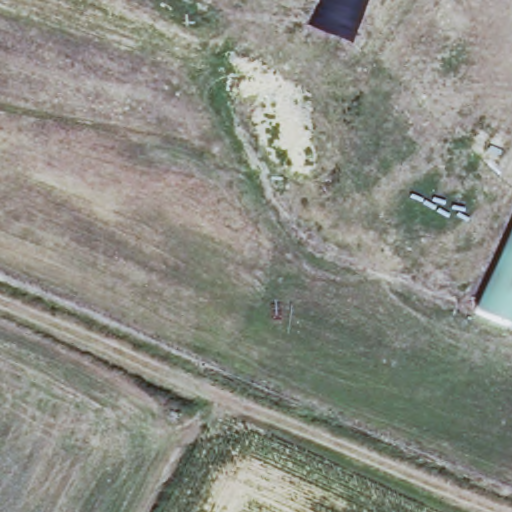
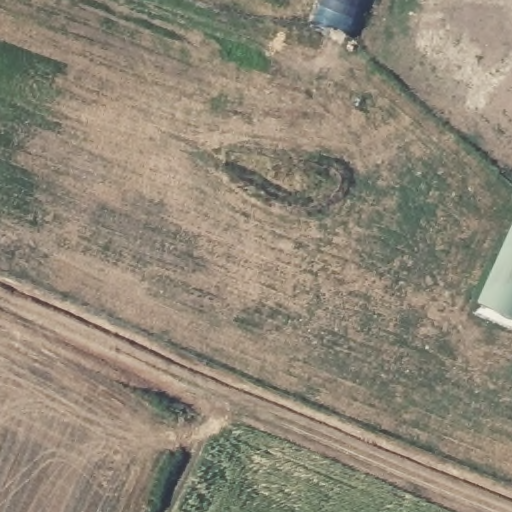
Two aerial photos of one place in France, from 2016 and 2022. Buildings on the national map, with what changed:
unchanged [(346,61),(308,42),(323,0),(369,0),(346,61)]
unchanged [(512,228),(512,327),(478,306),(512,228)]

